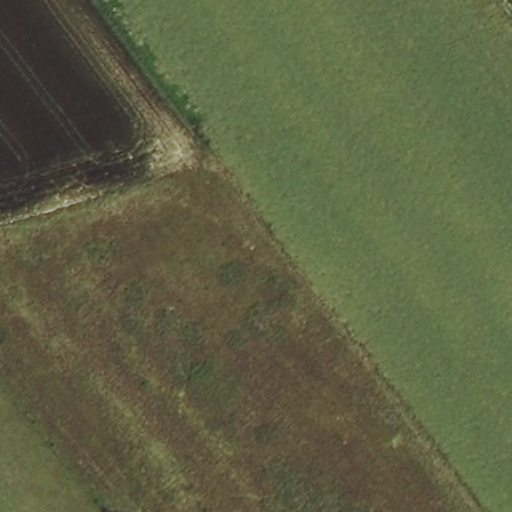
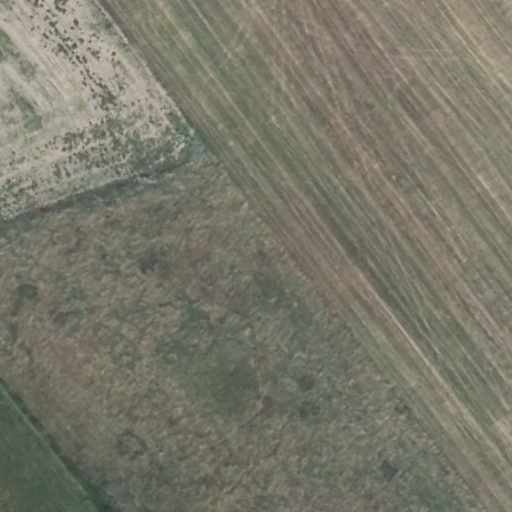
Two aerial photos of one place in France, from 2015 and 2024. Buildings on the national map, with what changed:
[]

